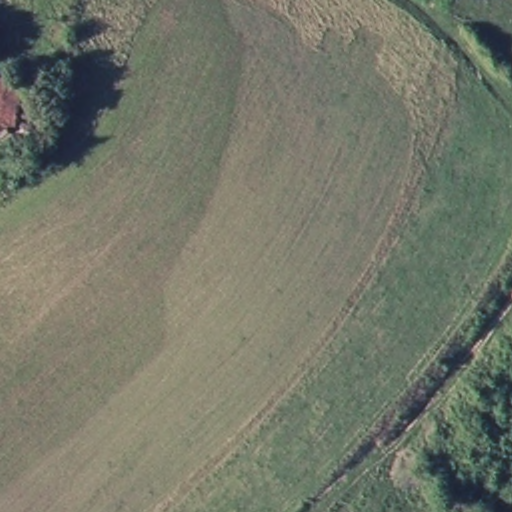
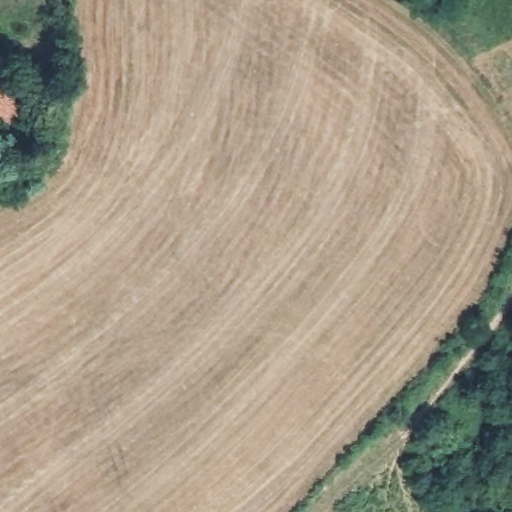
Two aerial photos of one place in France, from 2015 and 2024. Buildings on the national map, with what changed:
unchanged [(12,71),(10,99),(9,116),(0,115),(0,70),(12,71)]

